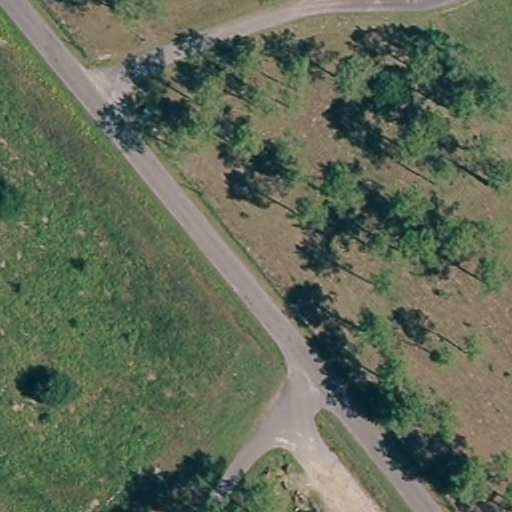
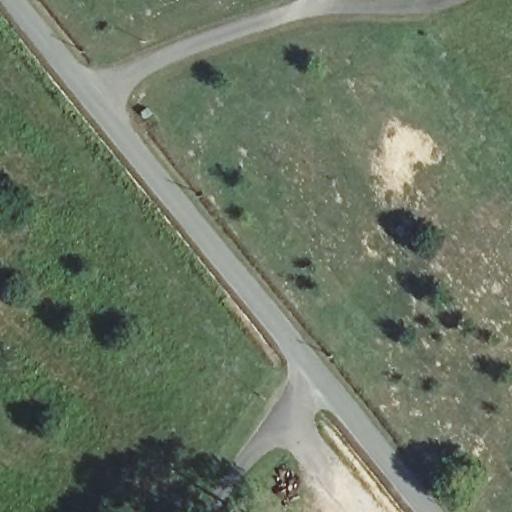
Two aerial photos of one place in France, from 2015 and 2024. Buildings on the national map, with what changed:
[]

